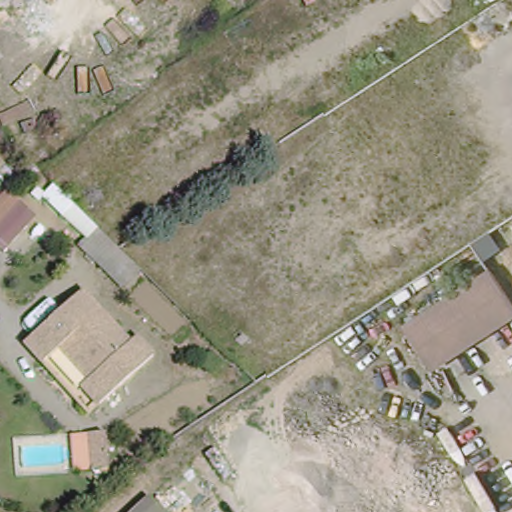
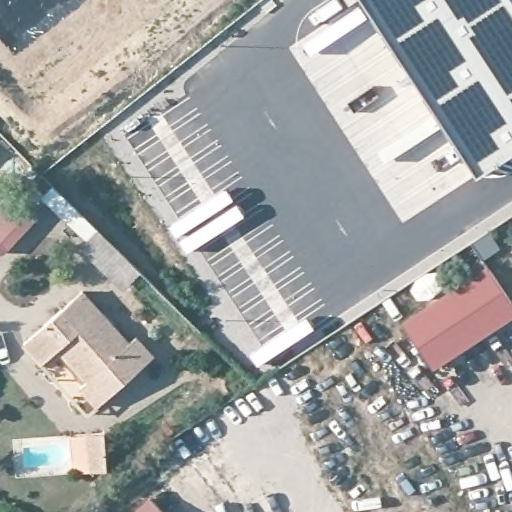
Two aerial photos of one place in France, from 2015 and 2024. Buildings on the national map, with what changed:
new [(365,0),(512,0),(512,149),(478,172),(365,0)]
unchanged [(5,190),(36,217),(8,248),(0,241),(0,196),(5,190)]
unchanged [(129,287),(83,242),(101,224),(122,245),(147,269),(129,287)]
new [(8,248),(2,254),(0,252),(0,241),(8,248)]
unchanged [(487,272),(512,306),(512,315),(432,368),(405,328),(487,272)]
unchanged [(79,290),(126,342),(132,336),(150,355),(95,405),(77,386),(85,380),(55,348),(39,363),(20,343),(79,290)]
unchanged [(104,470),(89,471),(70,472),(68,436),(87,434),(102,433),(104,470)]
unchanged [(168,512),(132,512),(152,495),(168,512)]

